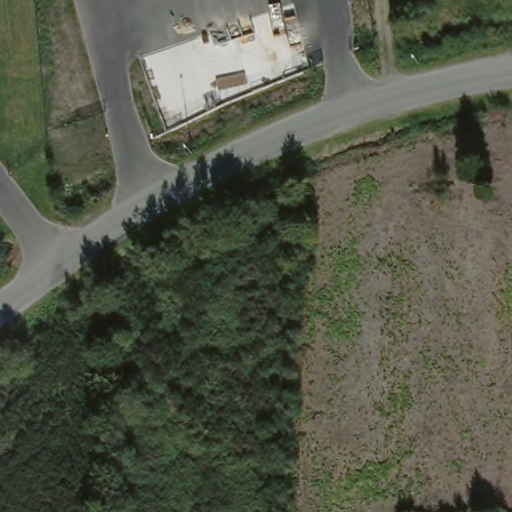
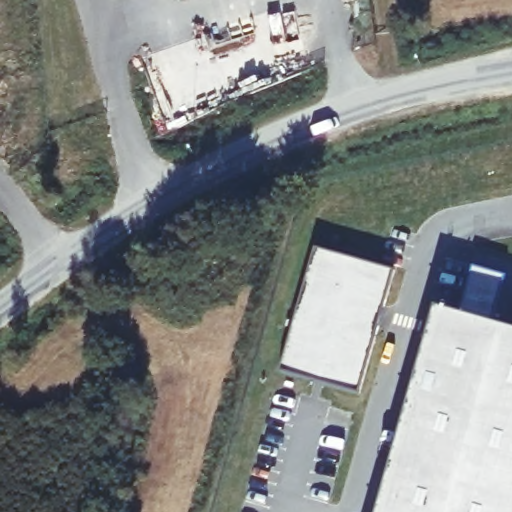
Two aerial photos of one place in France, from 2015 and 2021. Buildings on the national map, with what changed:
new [(315,249),(393,270),(360,393),(281,370),(315,249)]
new [(437,309),(460,316),(472,268),(505,277),(492,326),(512,331),(512,512),(379,512),(437,309)]

